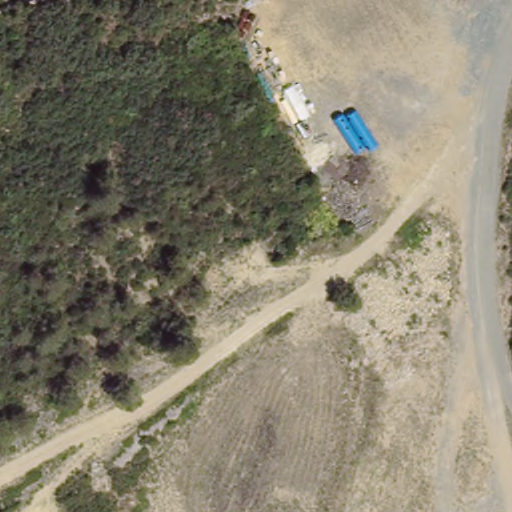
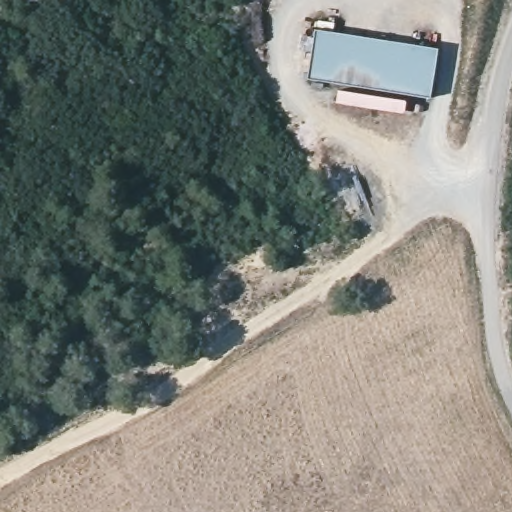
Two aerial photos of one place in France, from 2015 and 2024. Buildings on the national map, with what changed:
new [(437,49),(431,97),(307,78),(315,29),(437,49)]

